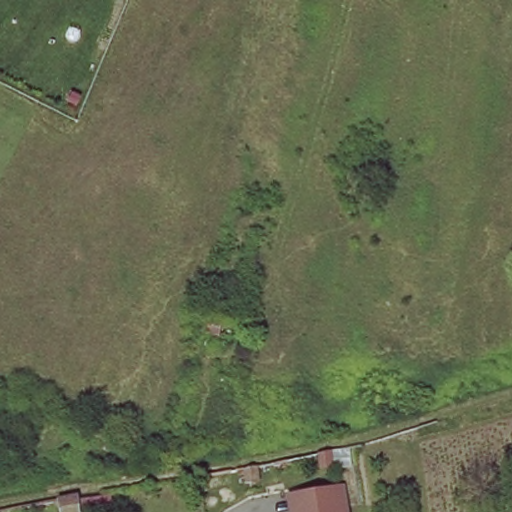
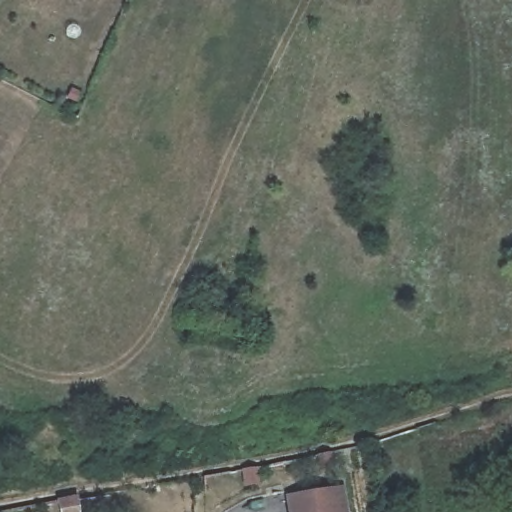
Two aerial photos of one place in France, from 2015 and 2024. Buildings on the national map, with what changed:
unchanged [(223,322),(220,337),(198,331),(200,315),(223,322)]
unchanged [(292,497),(332,492),(335,512),(295,512),(292,497)]
unchanged [(80,506),(81,512),(64,512),(64,510),(80,506)]

